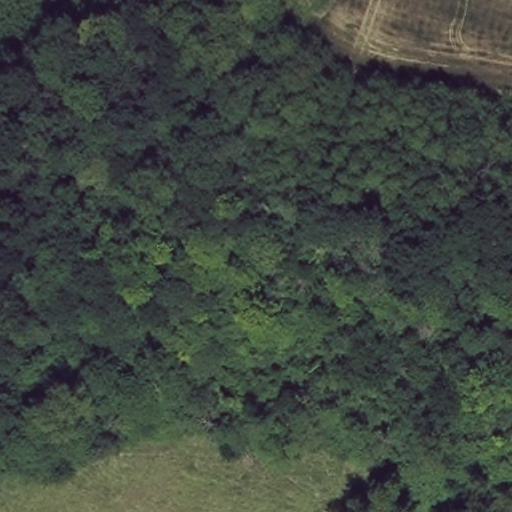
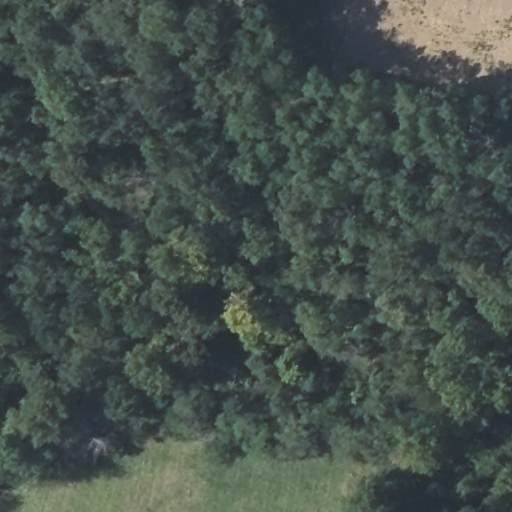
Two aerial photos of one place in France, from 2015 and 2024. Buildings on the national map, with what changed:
[]

